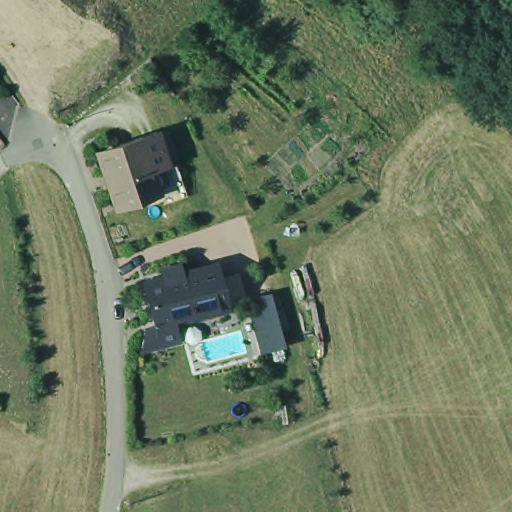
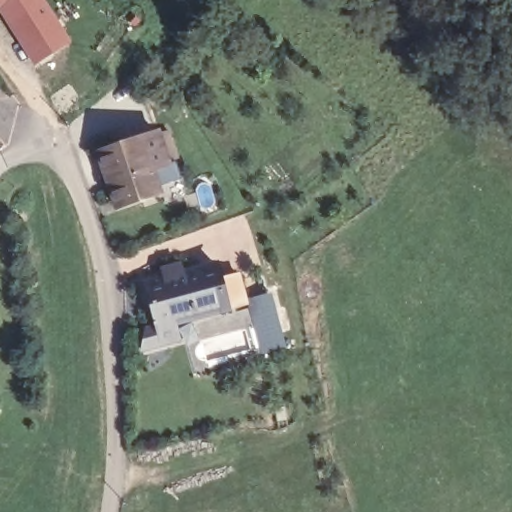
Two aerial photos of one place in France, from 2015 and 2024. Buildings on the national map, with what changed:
new [(0,0),(8,0),(0,10),(0,0)]
new [(33,67),(0,14),(0,10),(8,0),(43,0),(69,44),(33,67)]
unchanged [(163,129),(174,168),(158,173),(165,197),(118,212),(97,151),(163,129)]
unchanged [(203,311),(158,322),(147,277),(184,267),(214,260),(223,293),(226,305),(203,311)]
new [(269,292),(283,346),(261,352),(248,299),(269,292)]

